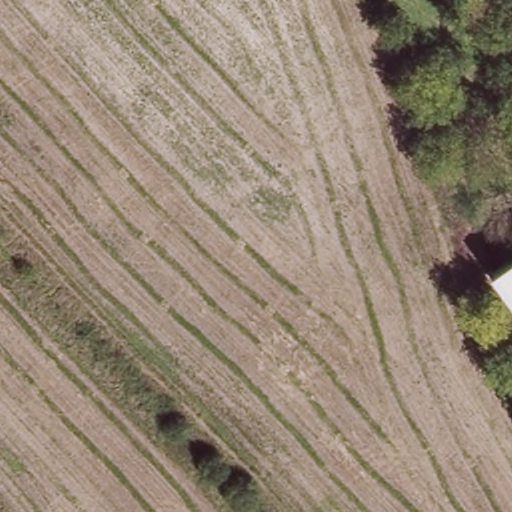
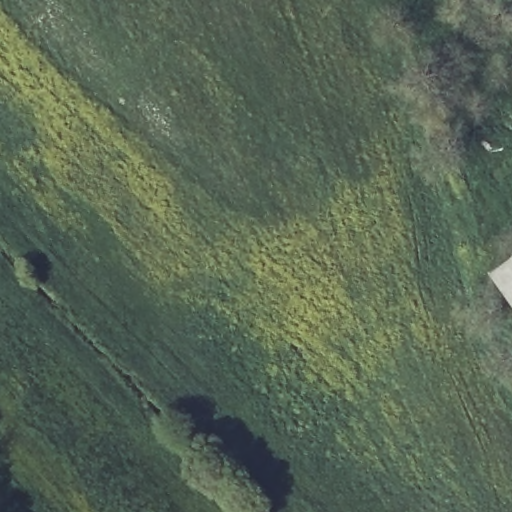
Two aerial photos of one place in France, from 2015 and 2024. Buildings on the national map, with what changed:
unchanged [(488,273),(512,256),(512,307),(488,273)]

